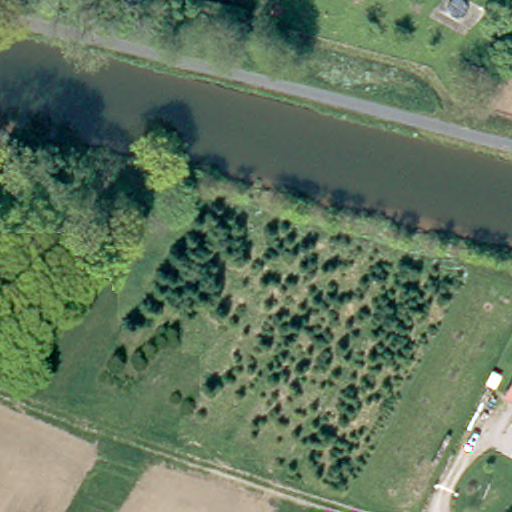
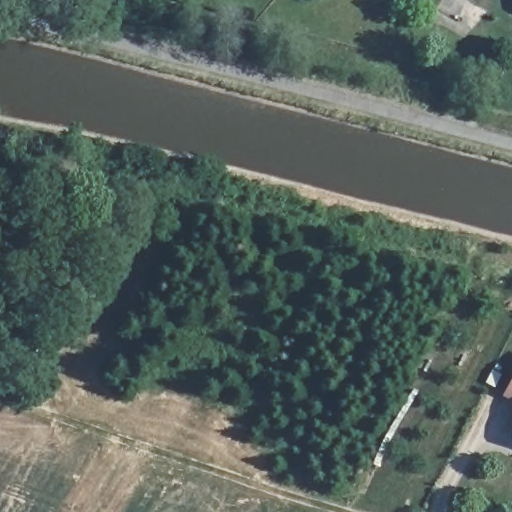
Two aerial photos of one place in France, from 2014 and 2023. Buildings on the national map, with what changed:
unchanged [(506,390),(512,377),(512,393),(506,390)]

